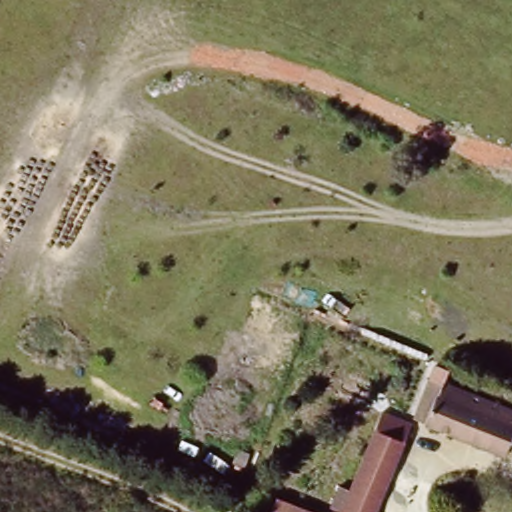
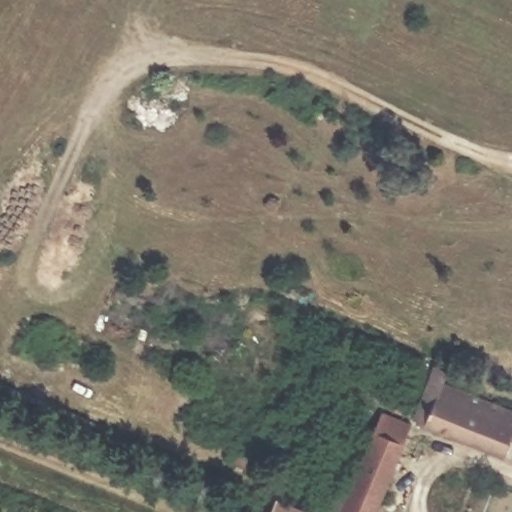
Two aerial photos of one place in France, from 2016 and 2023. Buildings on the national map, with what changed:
unchanged [(412,425),(427,381),(467,395),(464,404),(482,410),(485,401),(512,410),(512,443),(507,457),(412,425)]
unchanged [(381,512),(357,512),(391,409),(412,416),(381,512)]
unchanged [(289,499),(326,512),(285,512),(289,499)]

